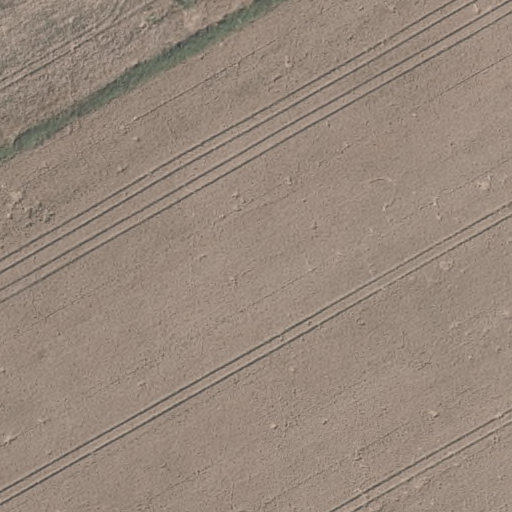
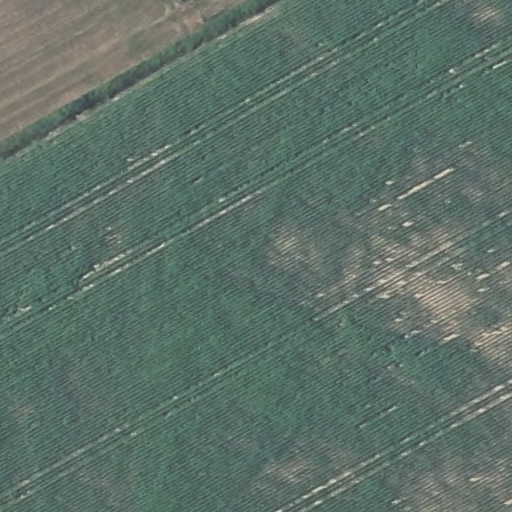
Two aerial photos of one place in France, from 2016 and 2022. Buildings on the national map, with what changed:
[]

